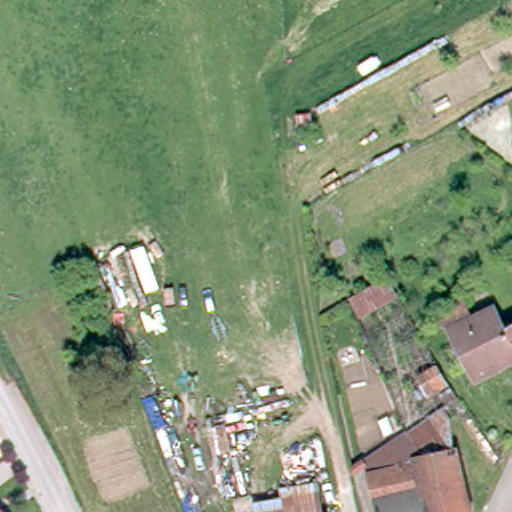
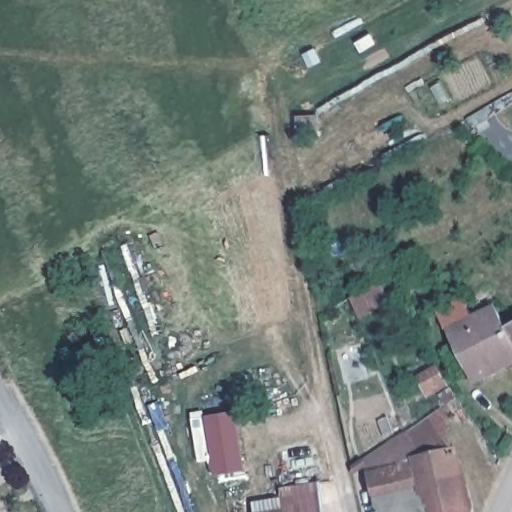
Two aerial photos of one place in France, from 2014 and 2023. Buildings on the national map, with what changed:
unchanged [(347,295),(385,272),(396,293),(358,315),(347,295)]
unchanged [(512,335),(512,370),(475,390),(449,337),(440,318),(465,305),(475,325),(498,314),(510,336),(512,335)]
unchanged [(420,374),(440,363),(450,381),(429,392),(420,374)]
unchanged [(443,392),(453,386),(458,396),(449,401),(443,392)]
unchanged [(407,433),(405,431),(444,406),(453,417),(471,511),(469,512),(380,512),(368,460),(407,433)]
new [(216,476),(206,418),(236,413),(245,471),(216,476)]
unchanged [(323,512),(282,512),(321,500),(323,512)]

